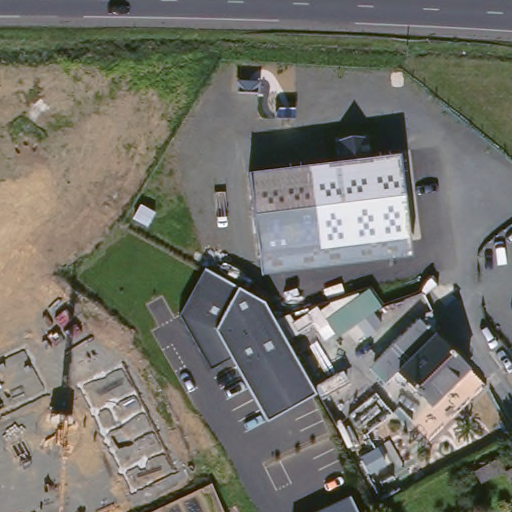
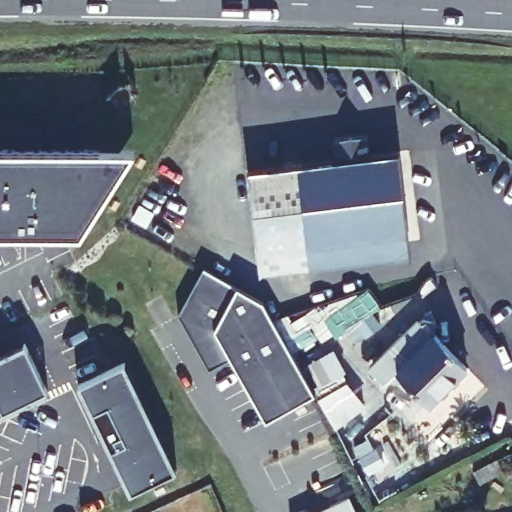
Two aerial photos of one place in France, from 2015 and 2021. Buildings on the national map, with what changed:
unchanged [(392,156),(406,255),(261,277),(250,176),(392,156)]
new [(110,167),(115,170),(117,175),(119,182),(118,187),(86,240),(0,239),(0,164),(103,165),(110,167)]
unchanged [(262,300),(311,395),(264,420),(228,360),(209,369),(178,316),(202,270),(262,300)]
unchanged [(473,366),(436,402),(404,371),(442,335),(473,366)]
new [(41,397),(0,418),(0,362),(18,353),(41,397)]
new [(115,368),(171,475),(128,497),(73,390),(115,368)]
unchanged [(498,452),(504,463),(480,475),(474,463),(498,452)]
unchanged [(504,463),(512,460),(512,479),(504,463)]
unchanged [(350,497),(356,512),(320,512),(350,497)]

